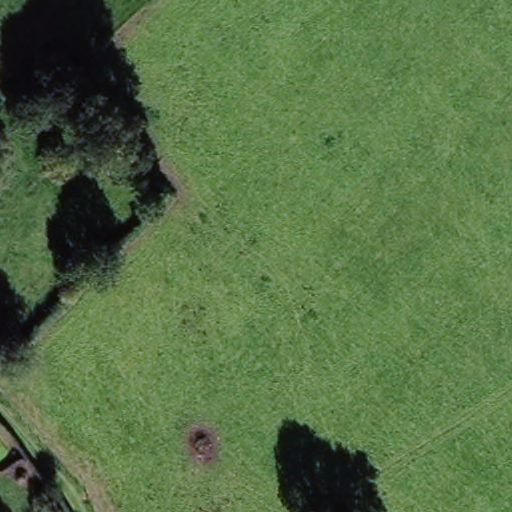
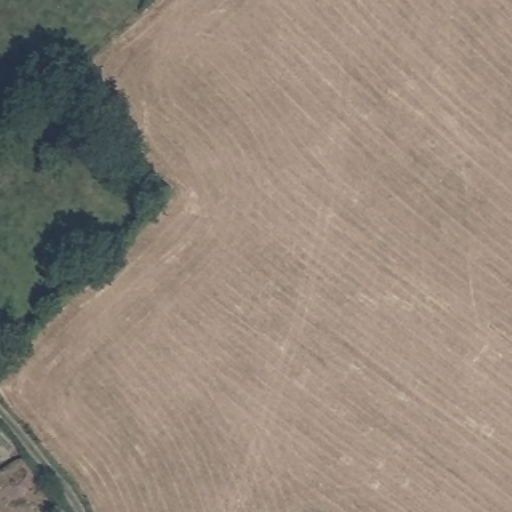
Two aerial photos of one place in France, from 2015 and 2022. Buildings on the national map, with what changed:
[]

